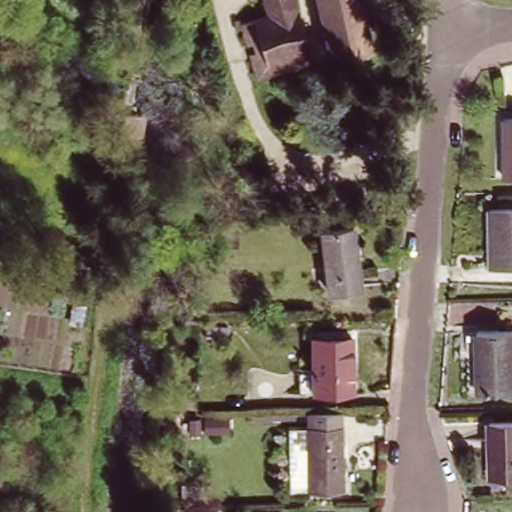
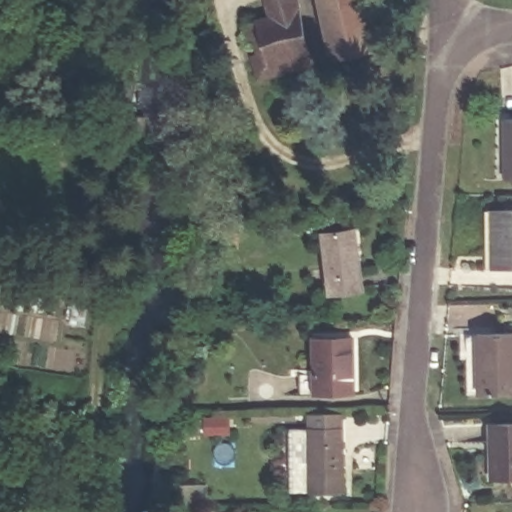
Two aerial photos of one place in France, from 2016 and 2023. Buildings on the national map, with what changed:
unchanged [(268,0),(303,0),(305,10),(273,20),(268,0)]
unchanged [(332,58),(317,0),(365,0),(372,30),(376,45),(363,49),(332,58)]
unchanged [(273,20),(305,10),(322,67),(265,85),(256,59),(270,55),(266,46),(253,50),(245,28),(273,20)]
unchanged [(512,117),(512,178),(505,178),(503,117),(512,117)]
unchanged [(109,119),(130,121),(127,145),(105,143),(109,119)]
unchanged [(512,210),(512,268),(495,270),(490,211),(512,210)]
unchanged [(363,286),(333,290),(325,232),(355,226),(363,286)]
unchanged [(480,339),(512,336),(512,395),(483,396),(480,339)]
unchanged [(355,390),(306,391),(305,375),(317,374),(316,339),(355,337),(355,390)]
unchanged [(347,491),(313,492),(312,431),(311,411),(346,411),(347,491)]
unchanged [(490,443),(488,444),(488,426),(512,426),(512,480),(491,480),(490,443)]
unchanged [(292,430),(312,431),(313,492),(294,493),(292,430)]

